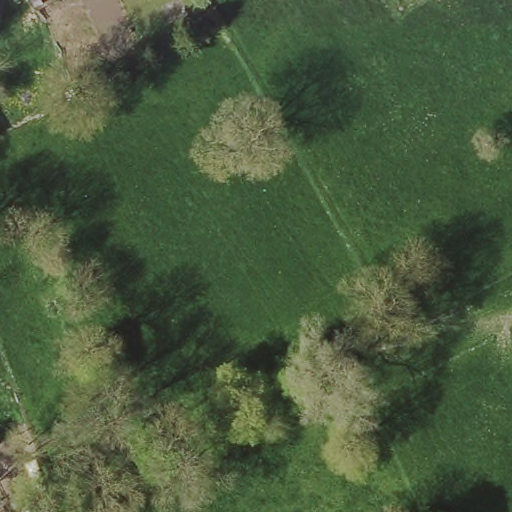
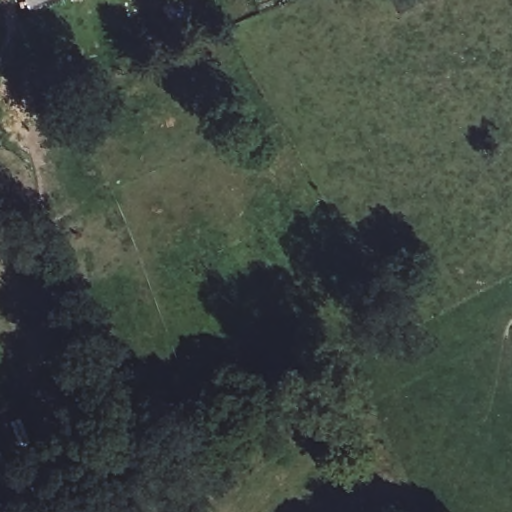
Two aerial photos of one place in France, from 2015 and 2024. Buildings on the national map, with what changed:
unchanged [(32,0),(41,0),(44,6),(36,10),(32,0)]
unchanged [(0,127),(0,92),(40,73),(57,107),(3,134),(0,127)]

